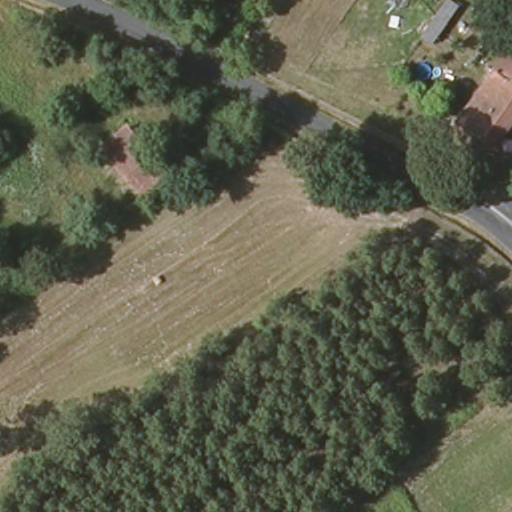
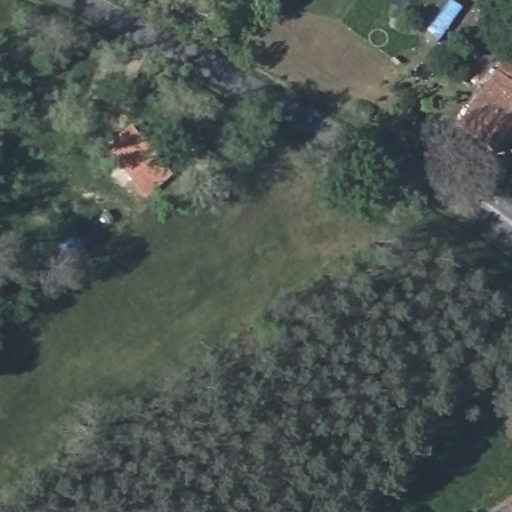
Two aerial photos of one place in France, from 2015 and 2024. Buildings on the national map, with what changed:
unchanged [(455,131),(512,49),(512,48),(512,124),(490,156),(455,131)]
unchanged [(142,192),(118,162),(106,146),(131,126),(145,143),(167,171),(142,192)]

